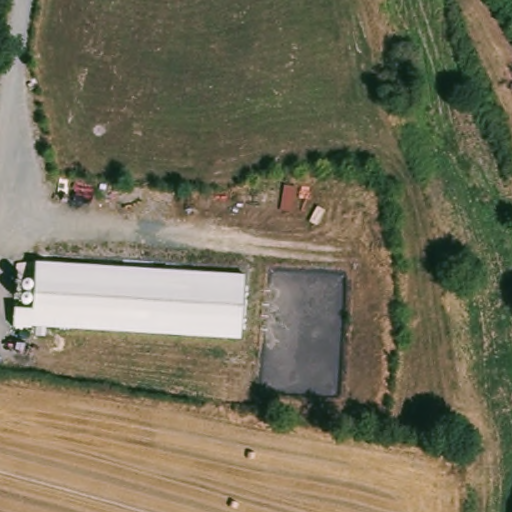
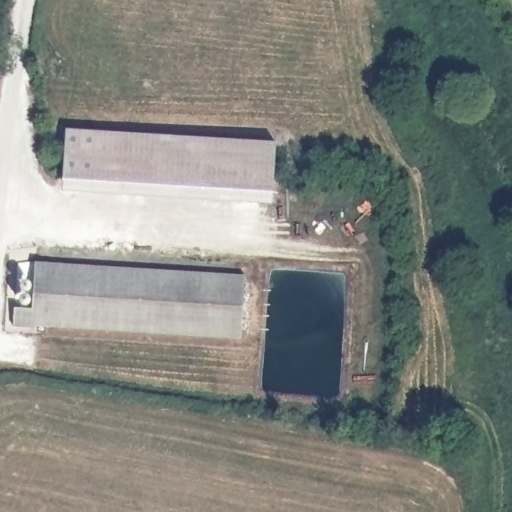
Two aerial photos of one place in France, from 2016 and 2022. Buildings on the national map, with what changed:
new [(62,191),(66,129),(274,142),(270,205),(62,191)]
unchanged [(243,274),(240,340),(32,325),(32,328),(13,327),(13,308),(21,308),(22,279),(34,280),(34,261),(243,274)]

